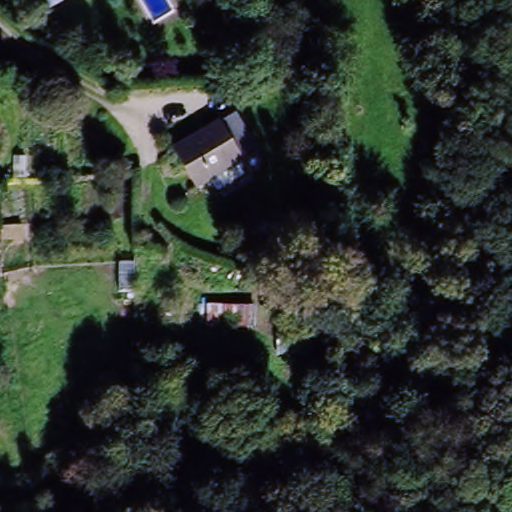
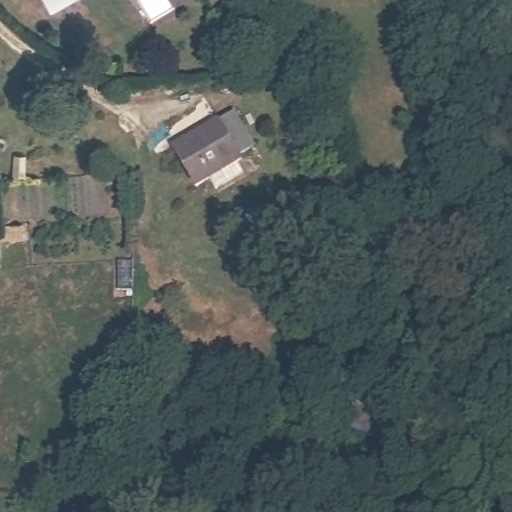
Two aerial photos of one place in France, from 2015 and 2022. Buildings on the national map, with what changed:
unchanged [(46,0),(65,0),(51,8),(46,0)]
unchanged [(245,164),(240,166),(256,191),(237,203),(221,178),(197,193),(170,151),(216,121),(245,164)]
unchanged [(385,392),(380,414),(348,412),(342,430),(325,422),(340,376),(385,392)]

